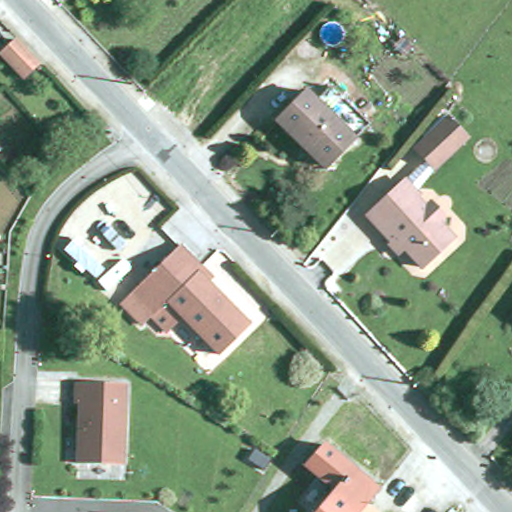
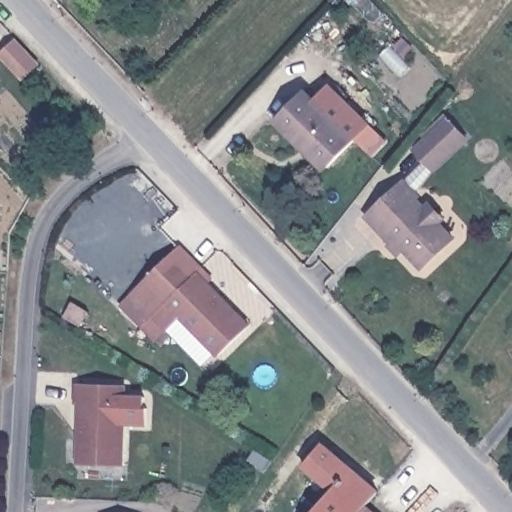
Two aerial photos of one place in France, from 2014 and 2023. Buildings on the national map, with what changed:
unchanged [(40,64),(25,78),(1,52),(15,39),(40,64)]
unchanged [(305,146),(301,148),(273,123),(302,92),(312,100),(328,81),(371,120),(326,165),(305,146)]
unchanged [(427,159),(415,147),(450,117),(467,138),(449,154),(435,167),(427,159)]
unchanged [(390,243),(392,241),(368,215),(404,180),(419,195),(416,198),(427,210),(430,207),(441,218),(438,221),(453,238),(423,266),(405,247),(399,253),(390,243)]
unchanged [(213,276),(209,281),(250,324),(220,353),(182,314),(166,328),(134,295),(131,292),(181,244),(184,247),(203,266),(213,276)]
unchanged [(79,464),(80,432),(80,415),(80,403),(77,404),(78,383),(125,385),(122,465),(79,464)]
unchanged [(339,483),(310,458),(327,438),(384,485),(371,501),(384,512),(317,512),(339,483)]

